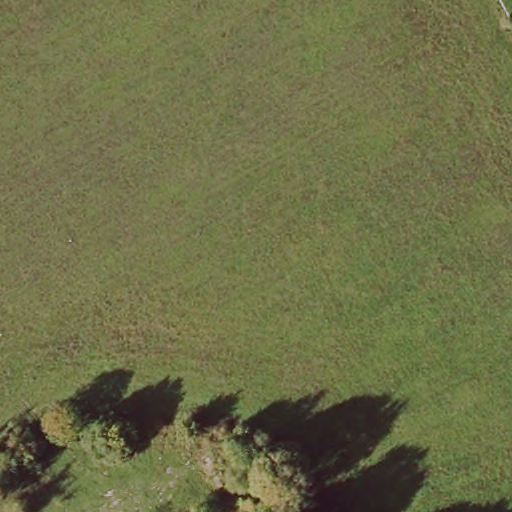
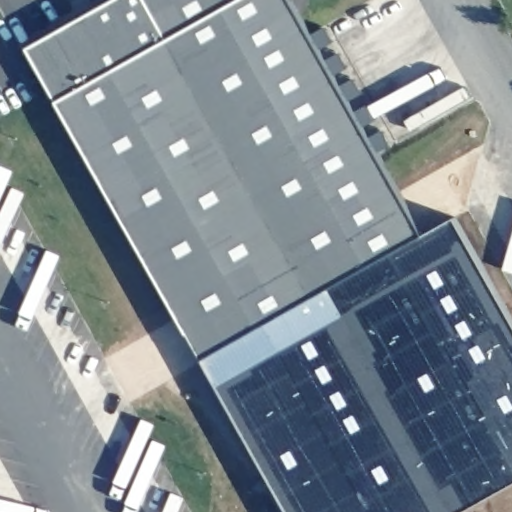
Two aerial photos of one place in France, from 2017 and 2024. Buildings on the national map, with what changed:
new [(423,231),(205,354),(29,45),(103,0),(293,0),(423,231)]
new [(424,235),(456,217),(512,317),(512,485),(463,512),(290,512),(201,356),(205,354),(422,231),(424,235)]

